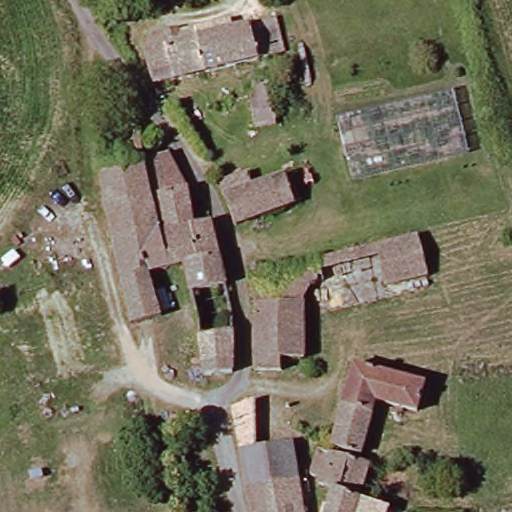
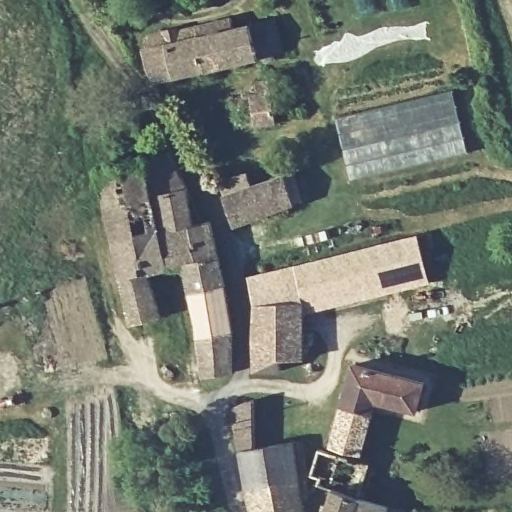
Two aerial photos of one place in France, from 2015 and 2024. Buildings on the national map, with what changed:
unchanged [(145,44),(151,43),(149,29),(174,24),(175,28),(196,24),(198,33),(254,22),(273,18),(280,54),(263,57),(152,79),(145,44)]
unchanged [(257,94),(255,79),(268,77),(272,91),(257,94)]
unchanged [(335,118),(340,117),(451,89),(467,152),(443,158),(424,162),(350,181),(335,118)]
unchanged [(211,227),(227,301),(232,334),(234,374),(229,390),(205,393),(197,315),(186,268),(170,271),(143,161),(169,157),(188,189),(194,230),(211,227)]
unchanged [(152,274),(162,324),(135,329),(131,330),(115,250),(97,173),(143,161),(170,271),(152,274)]
unchanged [(217,186),(245,176),(250,191),(291,177),(300,207),(234,230),(217,186)]
unchanged [(385,288),(381,273),(324,285),(319,260),(416,235),(426,279),(385,288)]
unchanged [(315,292),(305,305),(276,310),(268,273),(319,260),(324,285),(315,292)]
unchanged [(280,361),(281,371),(254,373),(252,307),(246,278),(268,273),(276,310),(305,305),(305,357),(280,361)]
unchanged [(330,448),(353,368),(423,387),(417,410),(378,400),(362,456),(330,448)]
unchanged [(297,481),(303,512),(278,512),(271,483),(246,488),(230,413),(255,397),(256,403),(260,447),(287,442),(298,441),(305,480),(297,481)]
unchanged [(260,447),(256,403),(281,399),(287,442),(260,447)]
unchanged [(329,488),(314,483),(318,474),(308,470),(315,449),(367,463),(356,497),(329,488)]
unchanged [(246,488),(271,483),(278,512),(252,512),(246,488)]
unchanged [(329,488),(356,497),(352,512),(324,512),(329,488)]

